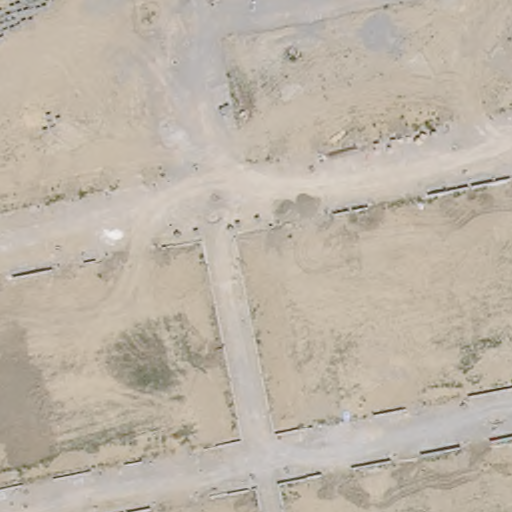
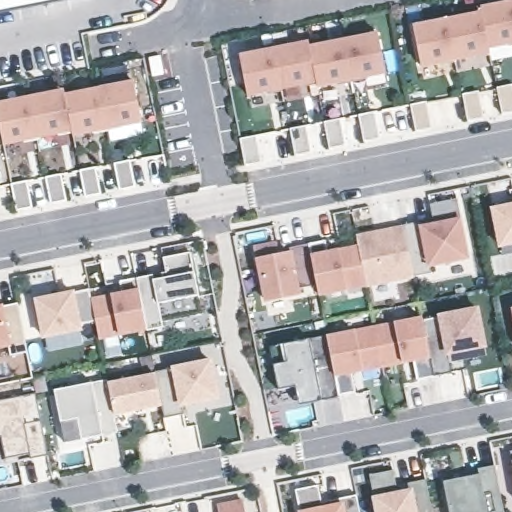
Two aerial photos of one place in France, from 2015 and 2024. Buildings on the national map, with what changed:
new [(0,0),(65,0),(0,13),(0,0)]
unchanged [(512,1),(512,42),(489,47),(483,12),(482,7),(512,1)]
unchanged [(483,12),(489,47),(491,52),(456,58),(449,19),(483,12)]
unchanged [(449,19),(456,58),(422,65),(414,26),(449,19)]
unchanged [(379,33),(387,72),(352,79),(344,40),(379,33)]
new [(344,40),(352,79),(318,86),(317,81),(310,47),(344,40)]
new [(309,42),(310,47),(317,81),(283,87),(275,49),(309,42)]
unchanged [(275,49),(283,87),(248,95),(241,55),(275,49)]
unchanged [(134,81),(142,120),(108,127),(100,87),(134,81)]
unchanged [(100,87),(108,127),(73,134),(73,129),(65,95),(100,87)]
new [(64,90),(65,95),(73,129),(38,136),(30,97),(64,90)]
unchanged [(38,136),(3,142),(0,124),(0,102),(30,97),(38,136)]
new [(434,219),(431,204),(458,199),(462,220),(461,221),(468,258),(430,266),(432,273),(414,276),(404,227),(404,225),(422,222),(434,219)]
new [(512,205),(512,242),(500,245),(493,209),(512,205)]
new [(404,227),(414,276),(366,286),(359,246),(357,236),(404,227)]
new [(326,240),(328,252),(359,246),(366,286),(319,295),(318,285),(309,244),(326,240)]
new [(276,243),(278,255),(291,252),(290,247),(309,244),(318,285),(299,289),(299,294),(266,301),(256,247),(276,243)]
new [(162,272),(166,271),(163,257),(191,251),(203,313),(163,321),(163,326),(147,330),(147,328),(137,277),(153,274),(162,272)]
new [(113,295),(113,300),(123,297),(120,281),(137,277),(147,328),(99,337),(96,320),(92,298),(113,295)]
new [(90,288),(92,298),(96,320),(80,323),(81,328),(44,336),(36,298),(90,288)]
new [(28,351),(11,355),(9,345),(0,346),(0,306),(18,302),(28,351)]
new [(434,376),(422,317),(438,315),(479,306),(488,346),(488,356),(452,363),(451,375),(434,376)]
new [(422,317),(434,376),(417,379),(414,360),(383,366),(375,327),(422,317)]
new [(375,327),(383,366),(352,372),(356,392),(339,395),(328,336),(375,327)]
new [(321,399),(299,403),(296,385),(280,388),(276,365),(271,347),(286,345),(309,340),(328,336),(339,395),(321,399)]
new [(171,367),(213,359),(219,398),(181,406),(184,413),(166,417),(162,403),(156,373),(171,367)]
new [(156,373),(162,403),(114,412),(108,382),(156,373)]
new [(108,378),(108,382),(114,412),(118,432),(65,442),(55,389),(108,378)]
new [(6,458),(1,436),(0,436),(0,399),(36,392),(48,455),(31,458),(30,453),(18,456),(19,460),(7,462),(6,458)]
new [(511,452),(512,452),(512,460),(511,452)]
unchanged [(466,471),(468,482),(481,480),(478,468),(495,465),(505,512),(450,512),(443,476),(466,471)]
new [(397,485),(409,482),(426,479),(433,512),(377,512),(369,475),(394,470),(397,485)]
new [(322,501),(340,497),(357,494),(361,512),(300,512),(296,489),(319,485),(322,501)]
unchanged [(218,506),(244,500),(246,512),(219,512),(218,506)]

